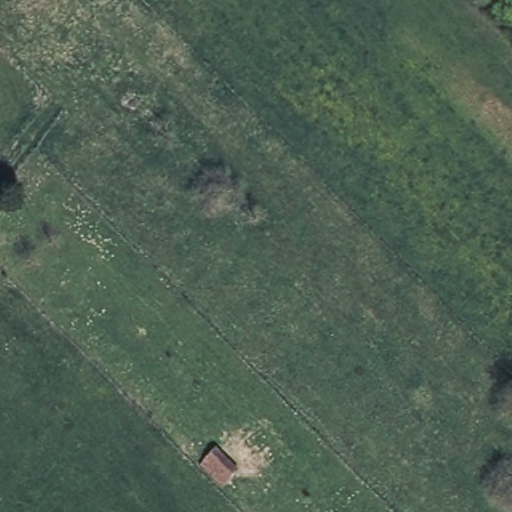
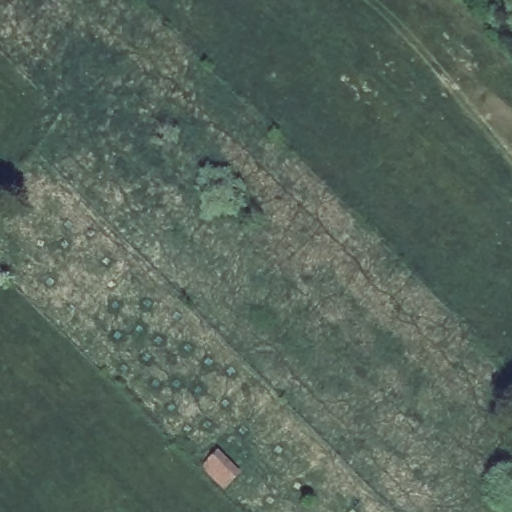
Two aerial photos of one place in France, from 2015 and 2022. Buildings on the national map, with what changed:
unchanged [(218,450),(240,471),(225,486),(202,467),(218,450)]

